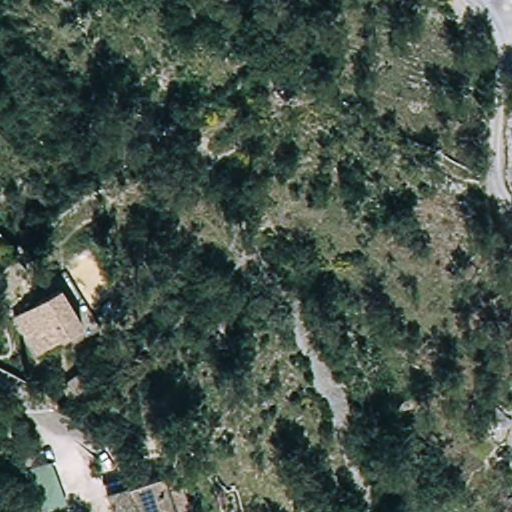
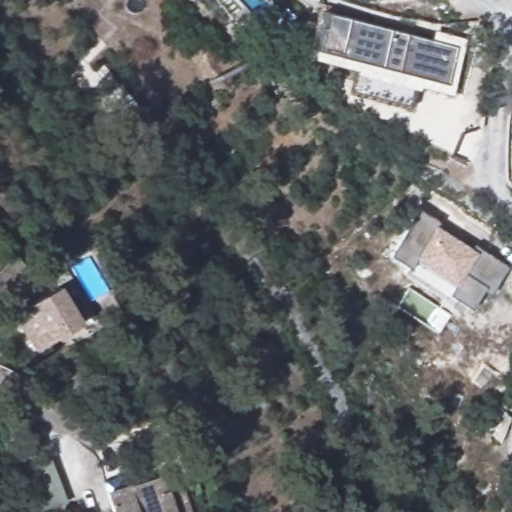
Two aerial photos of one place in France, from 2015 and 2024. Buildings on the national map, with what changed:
new [(432,42),(434,31),(467,41),(451,96),(421,88),(416,108),(351,91),(356,71),(312,59),(325,12),(432,42)]
new [(440,223),(437,227),(472,250),(474,246),(507,269),(490,296),(483,292),(471,310),(451,297),(447,301),(407,274),(410,270),(390,255),(418,210),(440,223)]
unchanged [(56,288),(77,326),(32,352),(10,314),(56,288)]
new [(51,460),(66,504),(42,512),(39,512),(25,469),(51,460)]
unchanged [(103,490),(161,471),(166,485),(180,481),(190,512),(110,512),(103,490)]

